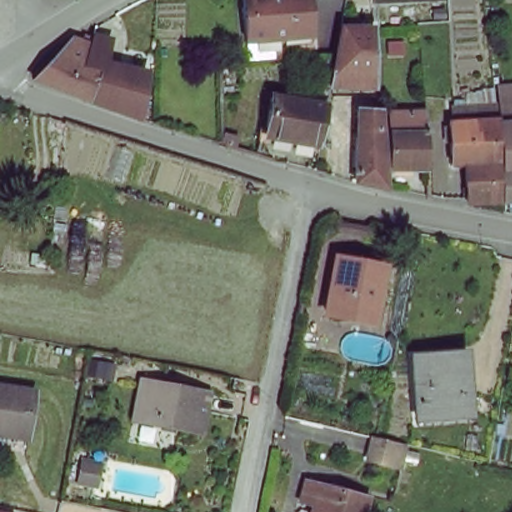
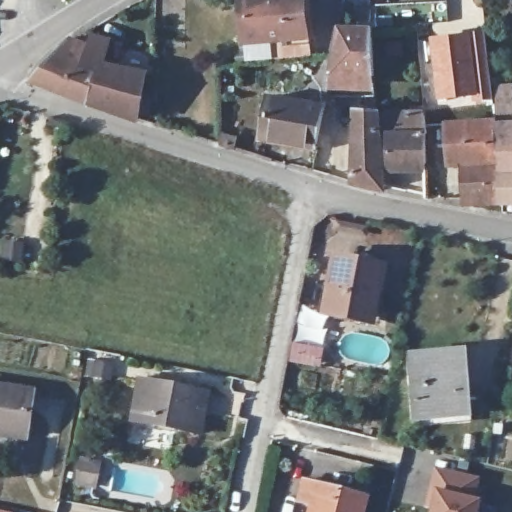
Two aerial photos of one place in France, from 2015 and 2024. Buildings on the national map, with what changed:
unchanged [(242,39),(242,0),(303,0),(305,37),(242,39)]
new [(478,26),(485,94),(458,97),(450,31),(478,26)]
unchanged [(377,81),(335,80),(345,30),(374,29),(377,81)]
new [(450,31),(458,97),(437,100),(428,35),(450,31)]
unchanged [(36,80),(75,36),(82,39),(83,35),(93,38),(94,34),(112,40),(105,61),(148,70),(138,120),(91,101),(36,80)]
unchanged [(315,146),(258,134),(265,97),(315,106),(318,98),(323,100),(315,146)]
unchanged [(356,180),(360,110),(380,110),(382,129),(385,131),(387,188),(356,180)]
unchanged [(430,129),(430,131),(426,131),(427,169),(392,168),(393,110),(428,111),(430,117),(430,129)]
unchanged [(502,205),(495,127),(498,127),(497,110),(512,110),(512,205),(502,205)]
unchanged [(465,206),(462,165),(448,166),(447,125),(495,124),(495,127),(502,205),(465,206)]
unchanged [(381,268),(372,318),(322,309),(332,258),(381,268)]
unchanged [(460,420),(417,423),(413,358),(463,355),(465,379),(468,418),(460,420)]
unchanged [(137,410),(143,378),(210,390),(201,430),(158,423),(135,420),(137,410)]
unchanged [(29,433),(0,430),(0,386),(32,389),(29,433)]
demolished [(365,460),(370,437),(375,438),(402,445),(397,468),(365,460)]
new [(430,507),(425,505),(434,467),(480,477),(475,498),(481,500),(478,512),(430,512),(430,507)]
unchanged [(90,481),(87,501),(67,499),(70,478),(90,481)]
unchanged [(365,497),(361,512),(308,512),(310,503),(297,500),(303,481),(365,497)]

